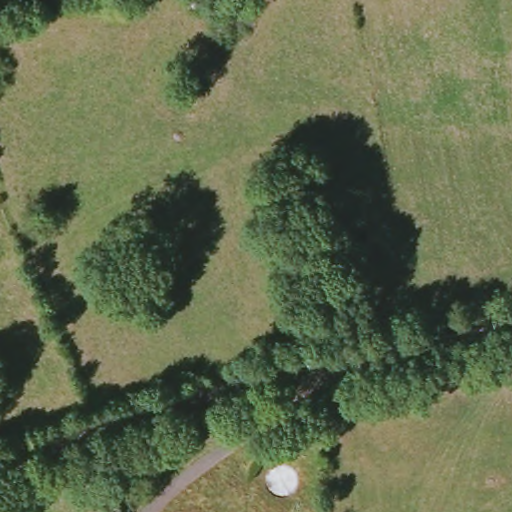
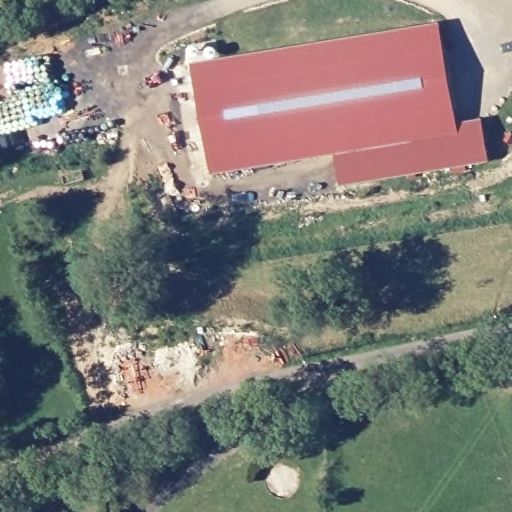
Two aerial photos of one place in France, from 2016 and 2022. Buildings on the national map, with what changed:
new [(460,134),(211,178),(192,63),(440,24),(460,134)]

